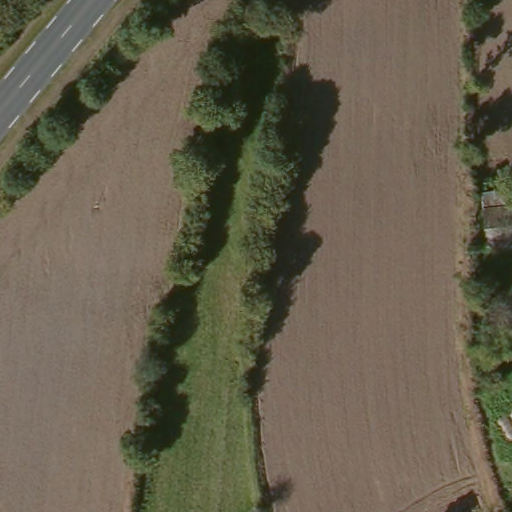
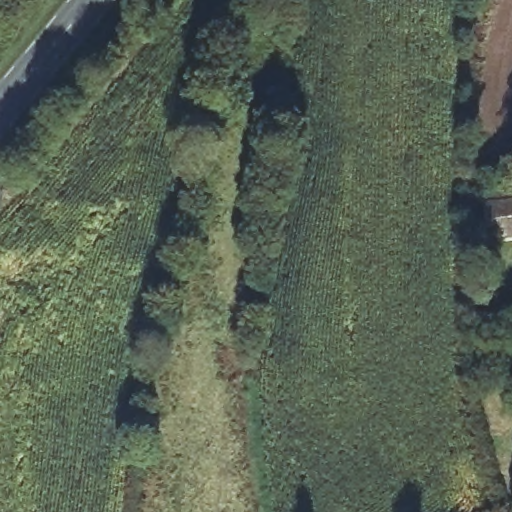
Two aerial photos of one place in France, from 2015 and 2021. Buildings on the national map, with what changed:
unchanged [(483,186),(512,183),(512,241),(487,243),(483,186)]

